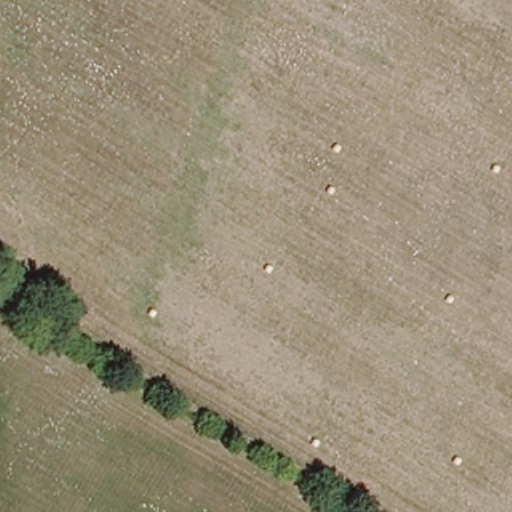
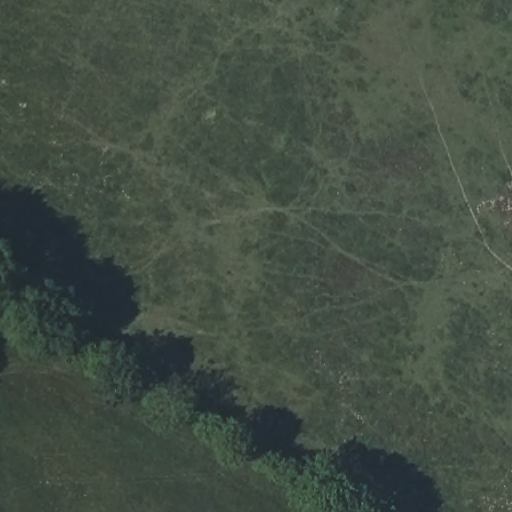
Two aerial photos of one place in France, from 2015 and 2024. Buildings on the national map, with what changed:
[]

